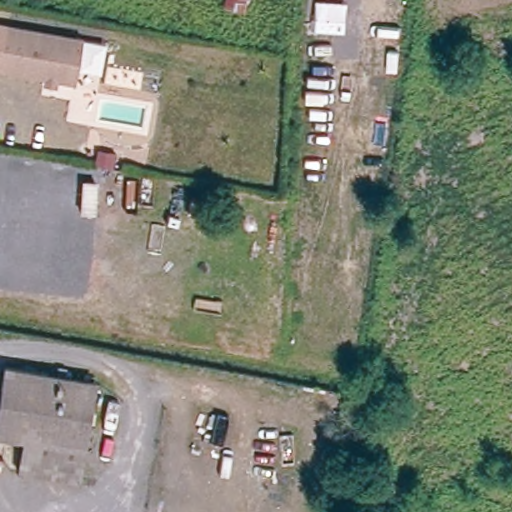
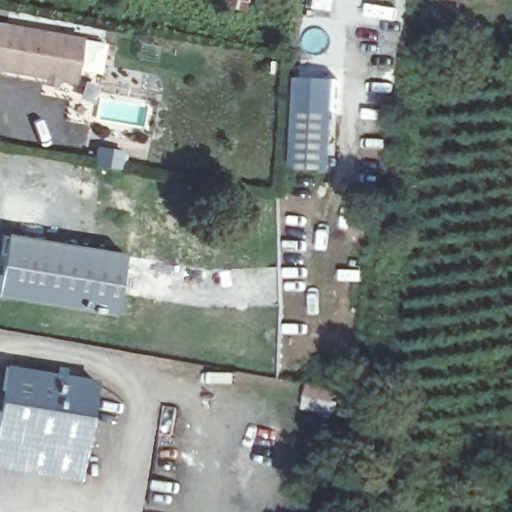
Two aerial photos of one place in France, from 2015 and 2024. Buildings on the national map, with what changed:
new [(0,20),(10,22),(2,65),(0,66),(0,20)]
unchanged [(84,35),(77,77),(2,65),(10,22),(84,35)]
new [(340,81),(335,172),(295,170),(300,79),(340,81)]
unchanged [(116,165),(99,162),(101,147),(119,150),(116,165)]
new [(124,250),(111,313),(0,292),(0,246),(4,228),(124,250)]
unchanged [(79,453),(0,440),(0,363),(92,379),(79,453)]

